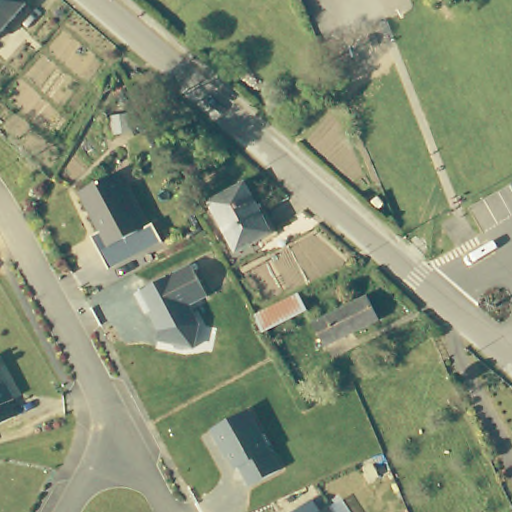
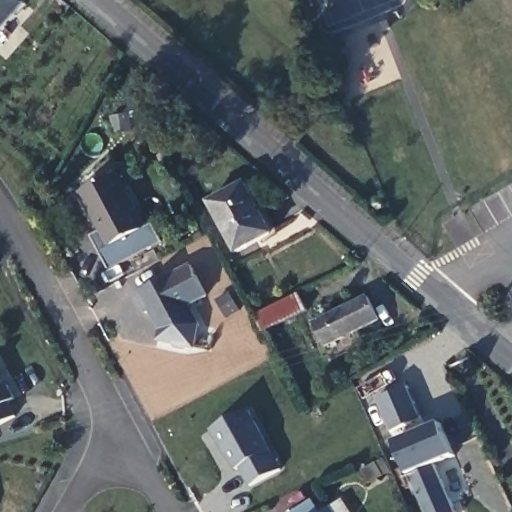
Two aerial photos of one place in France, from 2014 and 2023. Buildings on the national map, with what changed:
unchanged [(0,31),(0,0),(23,0),(25,2),(0,31)]
unchanged [(151,235),(124,249),(102,261),(85,228),(94,224),(72,182),(109,163),(137,219),(141,217),(151,235)]
unchanged [(268,232),(233,251),(207,204),(242,185),(268,232)]
unchanged [(207,297),(189,307),(190,310),(191,310),(200,325),(195,348),(190,347),(187,350),(176,348),(174,345),(160,342),(162,332),(163,331),(154,312),(149,315),(139,296),(192,267),(207,297)]
unchanged [(259,328),(252,313),(294,296),(302,311),(259,328)]
unchanged [(372,320),(319,345),(308,323),(361,296),(372,320)]
unchanged [(4,382),(9,383),(16,397),(10,401),(17,414),(0,423),(0,375),(4,382)]
new [(410,386),(426,423),(390,436),(377,400),(410,386)]
unchanged [(283,469),(254,486),(245,467),(240,468),(231,448),(229,450),(219,427),(254,408),(283,469)]
new [(455,457),(437,465),(457,512),(425,512),(409,477),(396,443),(440,425),(455,457)]
unchanged [(337,512),(323,512),(332,506),(337,512)]

